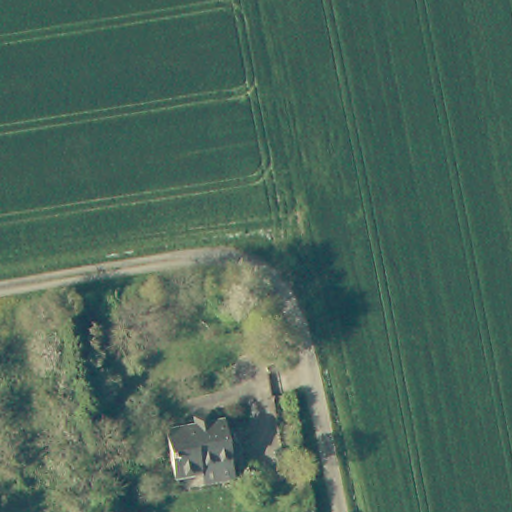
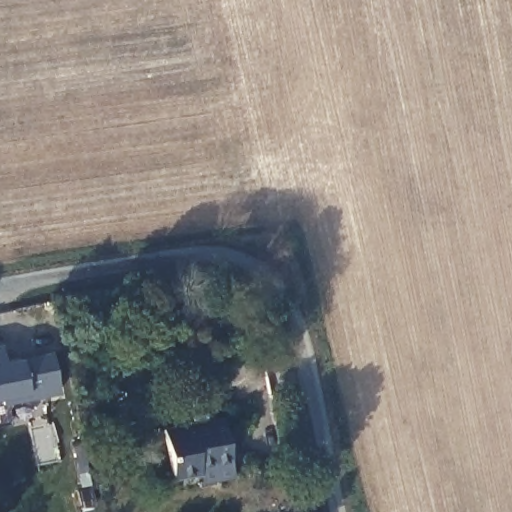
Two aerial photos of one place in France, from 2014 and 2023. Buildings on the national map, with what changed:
new [(4,407),(1,400),(0,401),(0,345),(5,344),(7,359),(53,350),(63,395),(4,407)]
unchanged [(235,464),(200,472),(201,480),(180,485),(170,435),(227,424),(235,464)]

